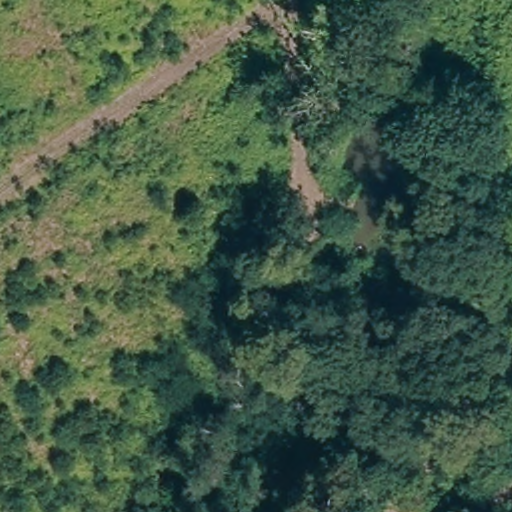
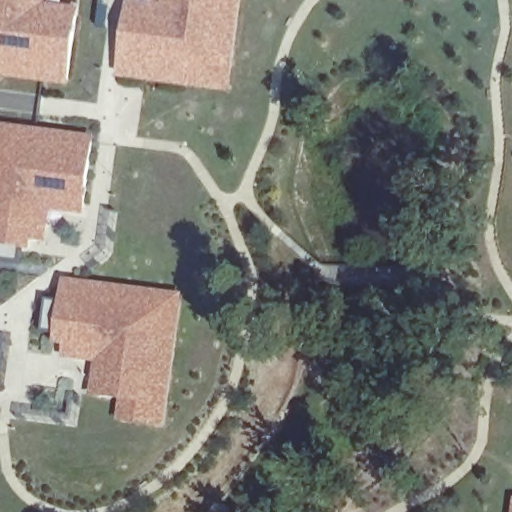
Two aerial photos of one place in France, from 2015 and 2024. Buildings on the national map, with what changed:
new [(79,6),(70,85),(0,75),(0,0),(46,0),(45,1),(79,6)]
new [(226,55),(224,77),(186,76),(186,72),(118,67),(125,4),(126,0),(161,0),(237,0),(230,56),(226,55)]
new [(96,136),(84,215),(49,211),(45,242),(31,242),(29,253),(19,252),(17,262),(0,260),(0,123),(96,136)]
new [(94,357),(61,352),(62,344),(64,333),(38,330),(42,296),(58,298),(60,280),(150,291),(149,294),(171,297),(166,332),(170,332),(161,401),(157,400),(154,422),(120,417),(123,396),(98,392),(90,391),(94,357)]
new [(2,332),(0,350),(0,332),(2,332)]

